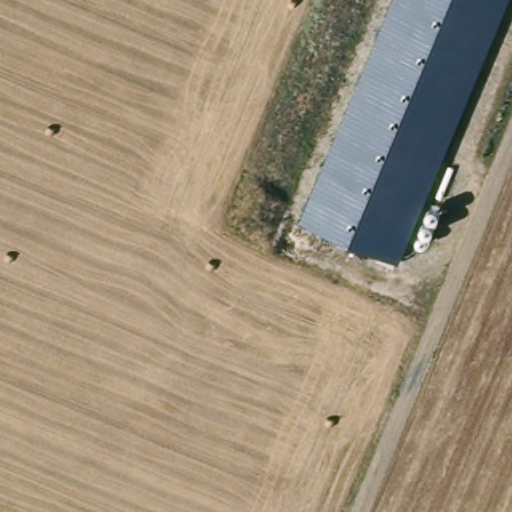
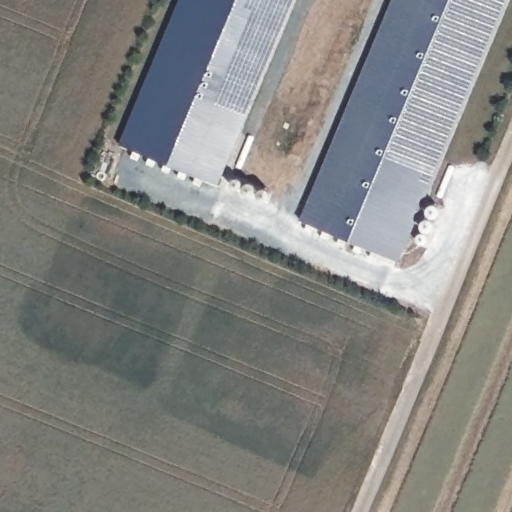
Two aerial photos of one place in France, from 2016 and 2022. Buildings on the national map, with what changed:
new [(180,0),(295,0),(218,185),(120,144),(180,0)]
unchanged [(391,0),(509,0),(400,263),(298,219),(391,0)]

